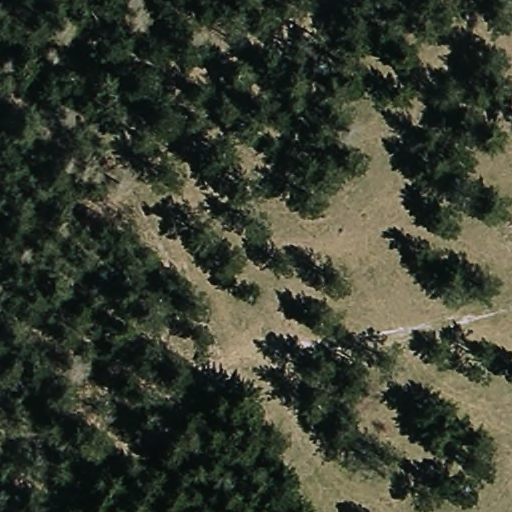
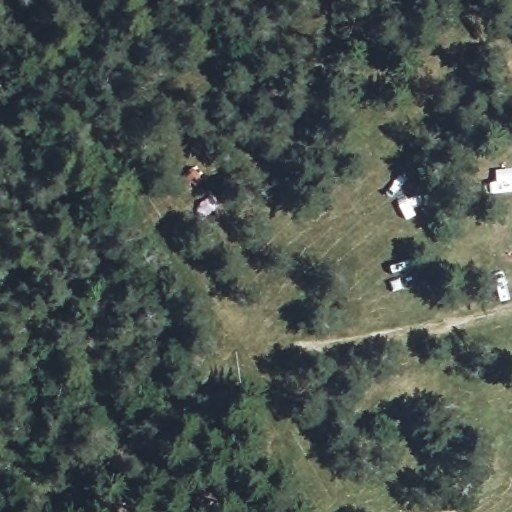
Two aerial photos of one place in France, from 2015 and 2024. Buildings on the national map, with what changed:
[]

